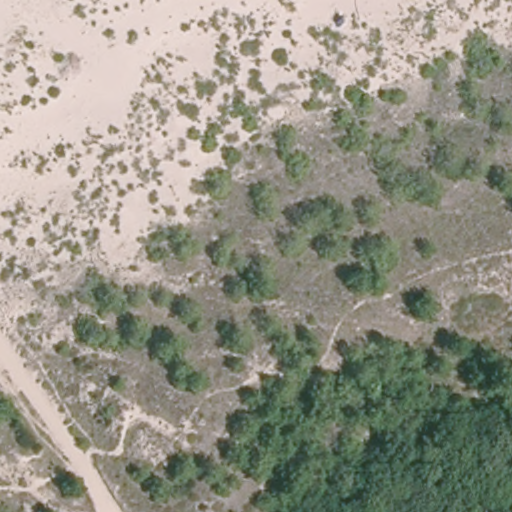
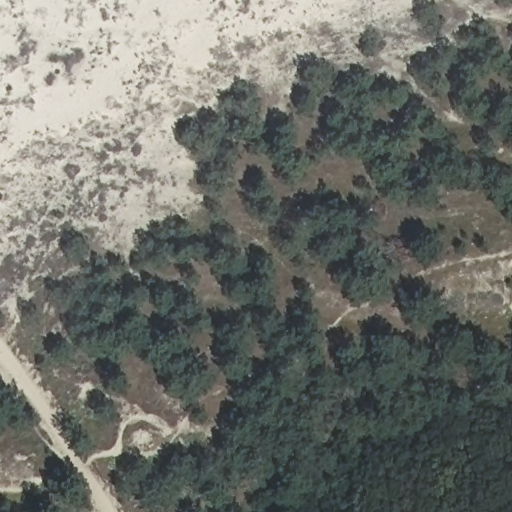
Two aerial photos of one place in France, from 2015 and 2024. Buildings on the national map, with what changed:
[]

